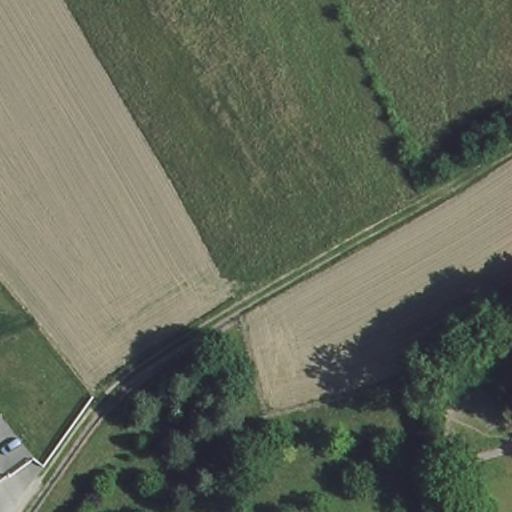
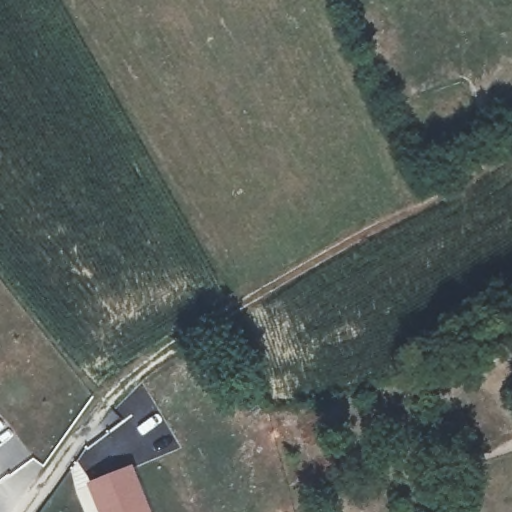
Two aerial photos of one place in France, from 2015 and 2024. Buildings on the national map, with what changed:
new [(88,483),(133,465),(152,512),(99,512),(88,483)]

